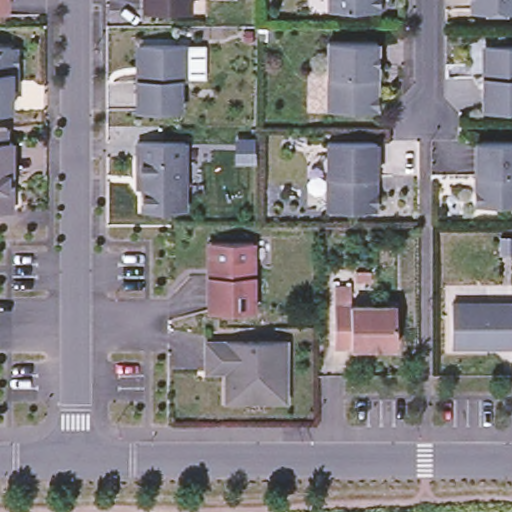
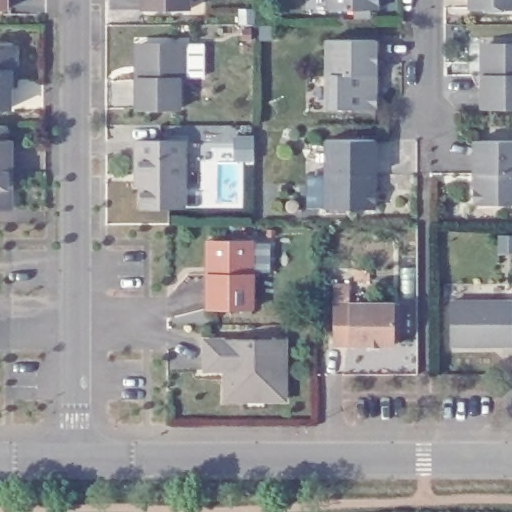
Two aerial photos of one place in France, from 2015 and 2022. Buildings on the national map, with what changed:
unchanged [(0,11),(0,0),(6,0),(6,11),(0,11)]
unchanged [(138,5),(138,0),(184,0),(184,6),(138,5)]
unchanged [(370,0),(370,6),(321,6),(321,0),(370,0)]
unchanged [(468,4),(468,0),(512,0),(512,4),(468,4)]
unchanged [(371,41),(371,74),(366,75),(366,87),(371,90),(371,109),(323,110),(323,40),(371,41)]
unchanged [(10,105),(0,105),(0,42),(9,42),(16,48),(17,65),(17,82),(11,82),(10,105)]
unchanged [(184,80),(180,80),(180,110),(136,110),(136,78),(138,45),(141,45),(184,44),(184,80)]
unchanged [(512,44),(512,108),(474,108),(474,76),(479,75),(479,67),(474,63),(474,49),(479,44),(512,44)]
unchanged [(6,137),(12,137),(12,170),(8,170),(8,184),(11,184),(11,206),(0,206),(0,122),(6,121),(6,137)]
unchanged [(374,140),(375,174),(371,174),(371,187),(375,189),(375,206),(371,210),(326,210),(327,141),(374,140)]
unchanged [(474,140),(512,141),(512,204),(474,204),(474,183),(474,173),(474,140)]
unchanged [(137,176),(137,142),(184,143),(184,209),(143,209),(142,187),(136,187),(137,176)]
unchanged [(253,310),(208,310),(208,275),(207,242),(212,242),(253,242),(253,310)]
unchanged [(394,345),(334,345),(334,303),(334,283),(349,283),(349,304),(394,304),(394,345)]
unchanged [(451,345),(451,301),(512,302),(512,345),(451,345)]
unchanged [(281,337),(281,396),(259,396),(259,386),(243,386),(243,396),(221,396),(221,366),(201,366),(201,337),(281,337)]

